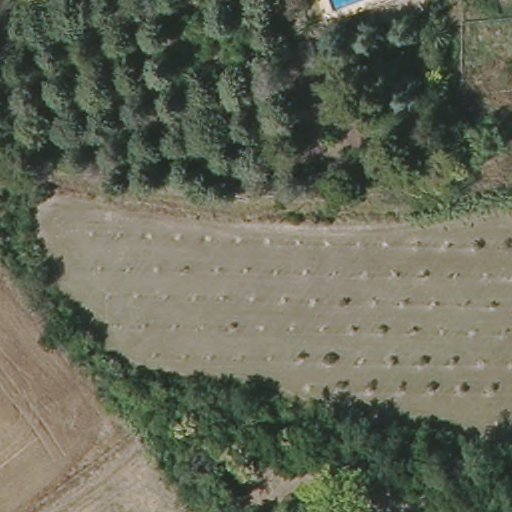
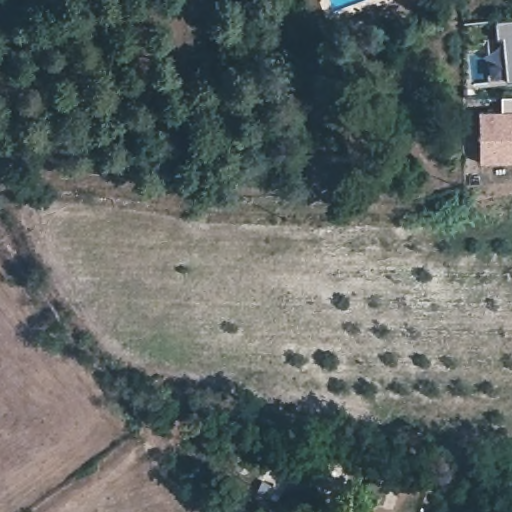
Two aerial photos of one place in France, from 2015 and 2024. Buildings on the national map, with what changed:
new [(508,79),(503,37),(497,37),(496,19),(512,18),(512,79),(508,79)]
new [(500,112),(500,96),(512,96),(512,161),(480,161),(480,112),(500,112)]

